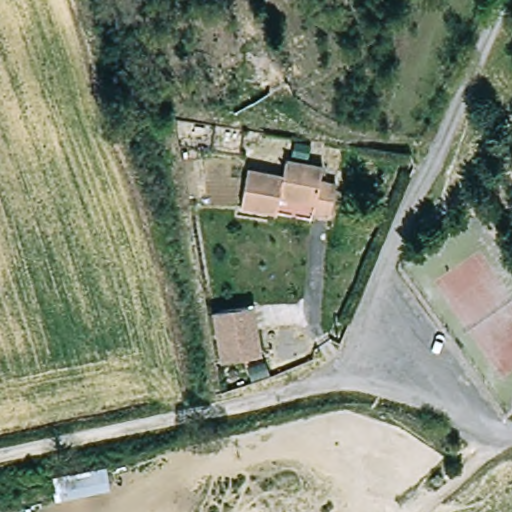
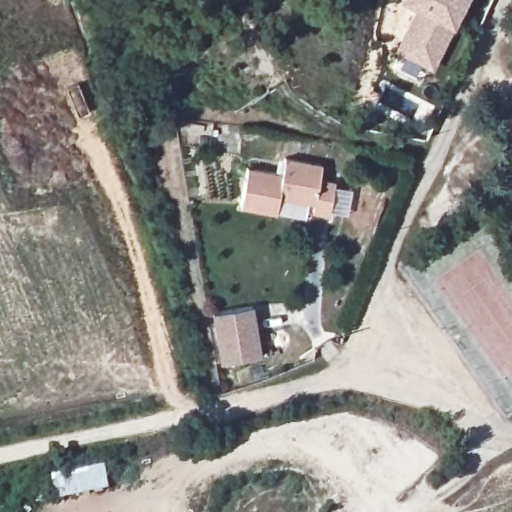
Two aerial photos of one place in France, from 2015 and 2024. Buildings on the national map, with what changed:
new [(466,0),(454,28),(433,71),(395,52),(416,10),(401,4),(402,0),(466,0)]
unchanged [(286,178),(287,163),(328,168),(326,184),(339,185),(335,220),(320,218),(321,209),(284,204),(282,217),(247,212),(252,173),(286,178)]
unchanged [(250,301),(260,370),(221,376),(211,306),(250,301)]
unchanged [(114,493),(63,503),(58,478),(109,469),(114,493)]

